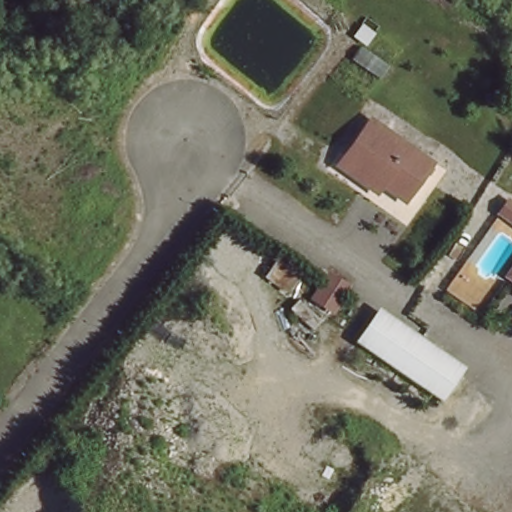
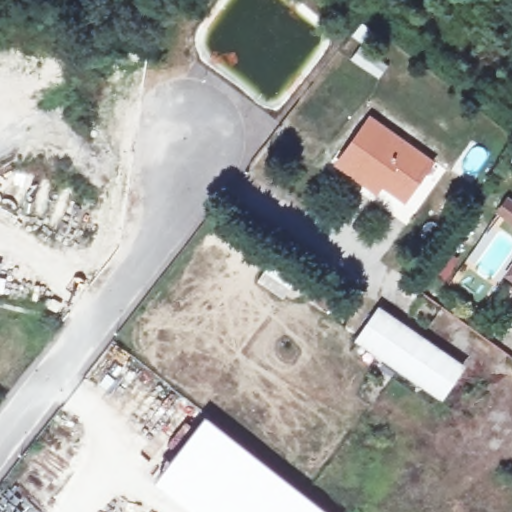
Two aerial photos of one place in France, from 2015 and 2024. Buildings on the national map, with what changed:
unchanged [(421,156),(394,194),(338,154),(366,117),(421,156)]
new [(512,204),(512,222),(502,215),(511,203),(512,204)]
unchanged [(457,364),(437,393),(361,340),(360,340),(381,312),(457,364)]
new [(206,414),(329,512),(194,512),(154,481),(206,414)]

